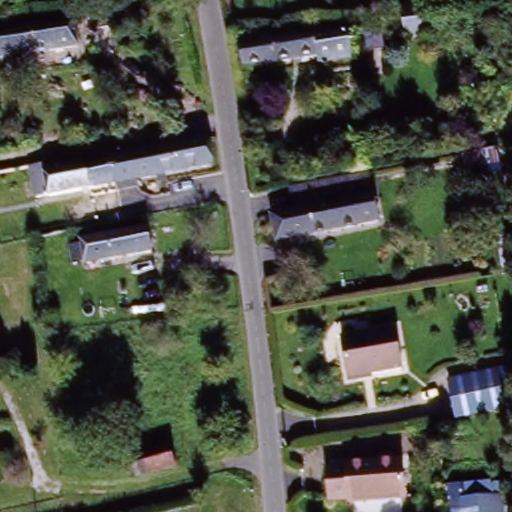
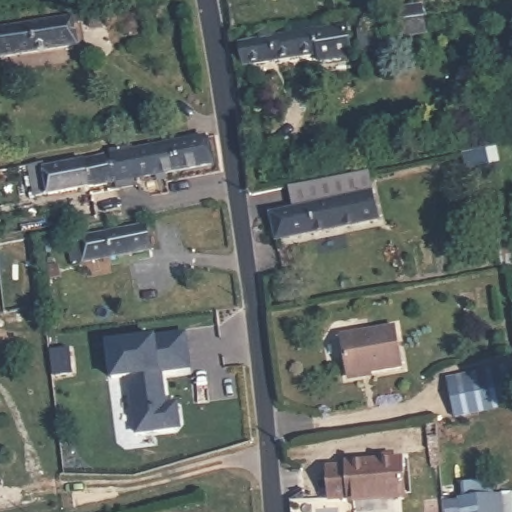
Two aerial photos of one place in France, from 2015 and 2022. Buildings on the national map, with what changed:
unchanged [(404,37),(401,10),(425,8),(428,35),(404,37)]
unchanged [(74,15),(80,43),(0,57),(0,28),(74,15)]
unchanged [(381,15),(385,48),(360,51),(355,19),(381,15)]
unchanged [(238,42),(353,23),(355,32),(345,34),(349,58),(312,63),(312,59),(243,69),(238,42)]
unchanged [(101,159),(197,140),(202,166),(107,187),(101,159)]
unchanged [(48,199),(40,172),(101,159),(107,187),(48,199)]
unchanged [(377,194),(282,213),(277,193),(373,174),(377,194)]
unchanged [(382,221),(265,243),(260,217),(282,213),(377,194),(382,221)]
unchanged [(146,224),(152,255),(80,268),(80,237),(146,224)]
unchanged [(397,327),(403,365),(348,373),(343,335),(397,327)]
new [(182,332),(188,367),(157,372),(158,379),(161,379),(165,403),(175,402),(178,421),(179,426),(136,432),(127,376),(110,378),(105,344),(182,332)]
unchanged [(512,406),(455,420),(447,381),(512,368),(512,406)]
demolished [(137,449),(174,441),(180,461),(142,471),(137,449)]
unchanged [(348,466),(407,457),(412,494),(353,501),(348,466)]
unchanged [(452,502),(503,498),(506,512),(453,512),(452,502)]

